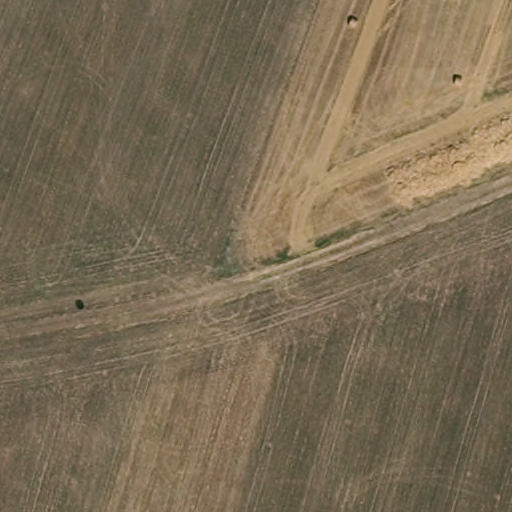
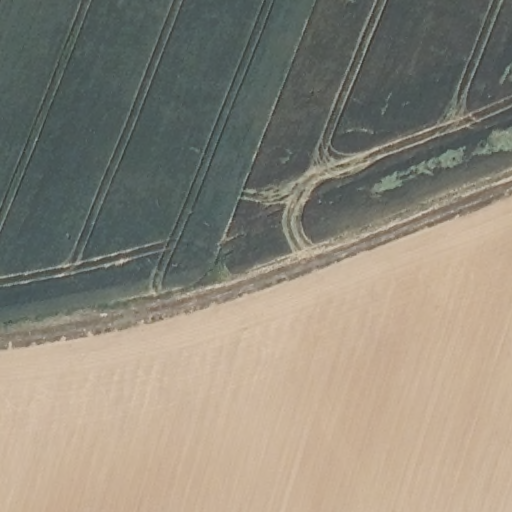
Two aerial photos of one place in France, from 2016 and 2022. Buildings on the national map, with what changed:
[]

